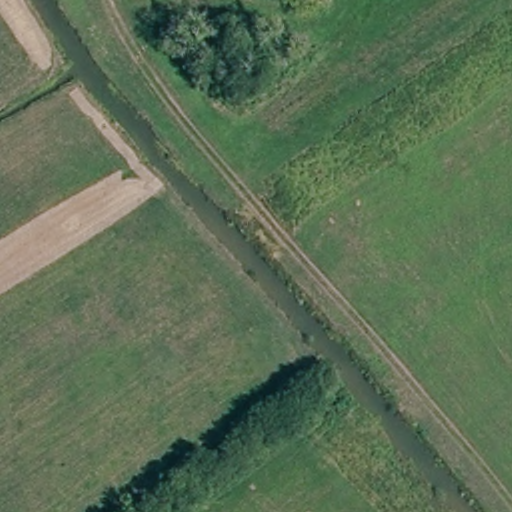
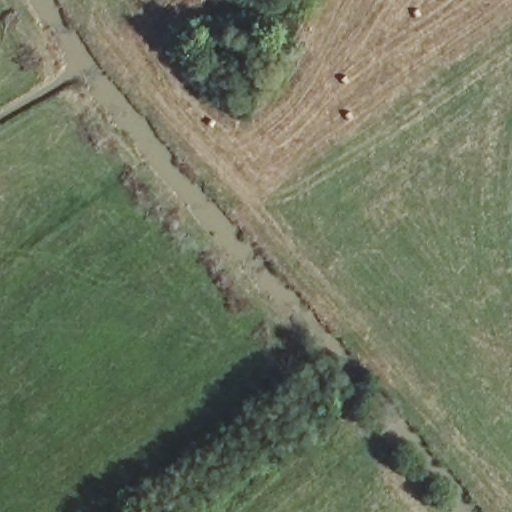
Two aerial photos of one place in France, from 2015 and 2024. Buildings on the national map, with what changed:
[]

